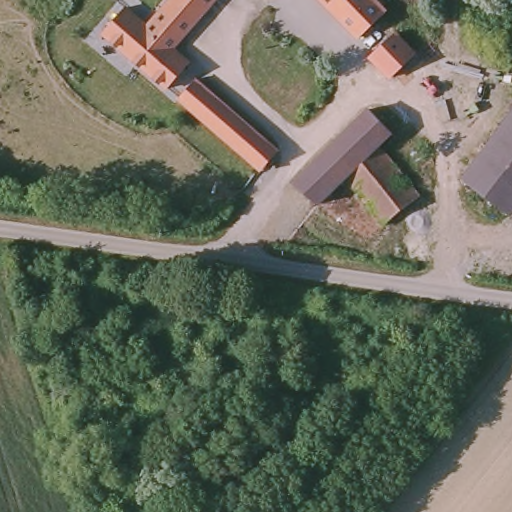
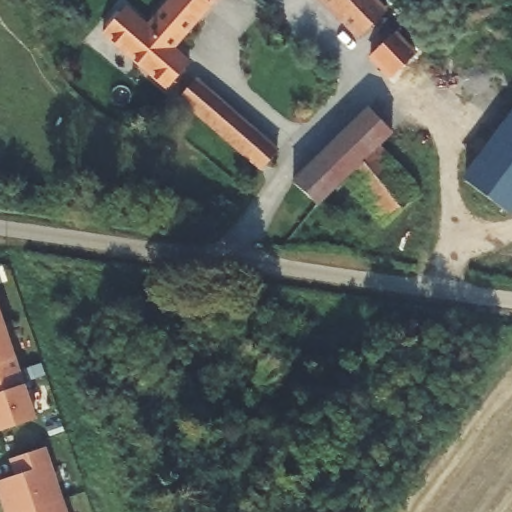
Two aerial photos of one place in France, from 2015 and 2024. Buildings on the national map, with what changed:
unchanged [(146,29),(171,0),(215,0),(175,46),(171,50),(189,65),(174,82),(167,91),(101,35),(123,9),(146,29)]
unchanged [(386,14),(381,19),(359,40),(321,0),(373,0),(383,11),(386,14)]
unchanged [(391,30),(411,51),(386,74),(366,53),(391,30)]
unchanged [(198,82),(276,156),(259,172),(228,144),(179,101),(182,99),(186,94),(198,82)]
unchanged [(370,111),(393,135),(364,163),(344,179),(346,180),(318,207),(293,185),(370,111)]
unchanged [(502,209),(462,179),(512,114),(512,196),(502,209)]
unchanged [(344,179),(364,163),(381,149),(422,198),(384,228),(346,180),(344,179)]
new [(0,431),(0,317),(34,420),(0,431)]
new [(10,459),(44,448),(65,512),(5,512),(0,496),(0,481),(16,476),(10,459)]

